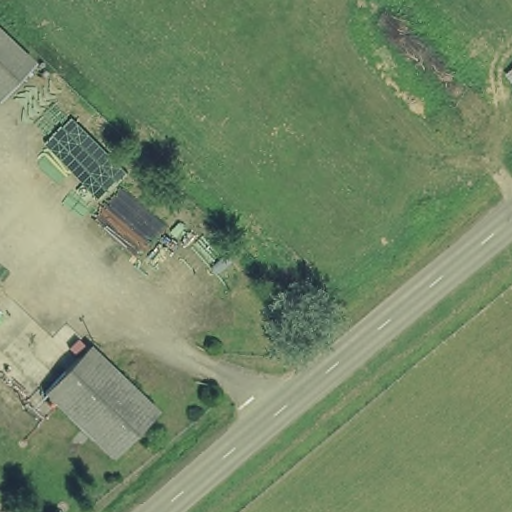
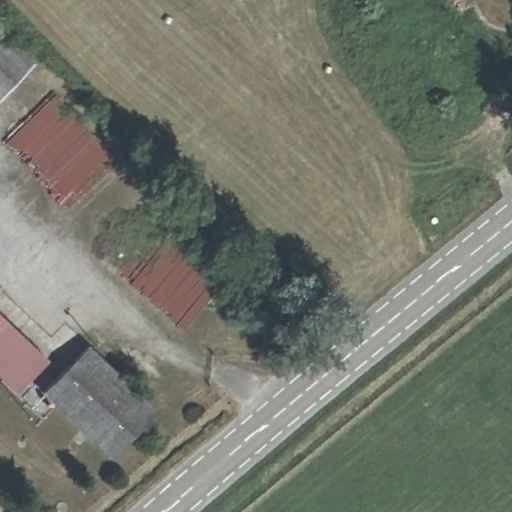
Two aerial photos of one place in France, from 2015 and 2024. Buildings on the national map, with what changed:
unchanged [(0,35),(29,65),(0,94),(0,35)]
unchanged [(496,78),(512,65),(512,96),(496,78)]
new [(0,377),(0,314),(48,360),(16,393),(0,377)]
unchanged [(84,345),(153,413),(107,460),(38,392),(84,345)]

